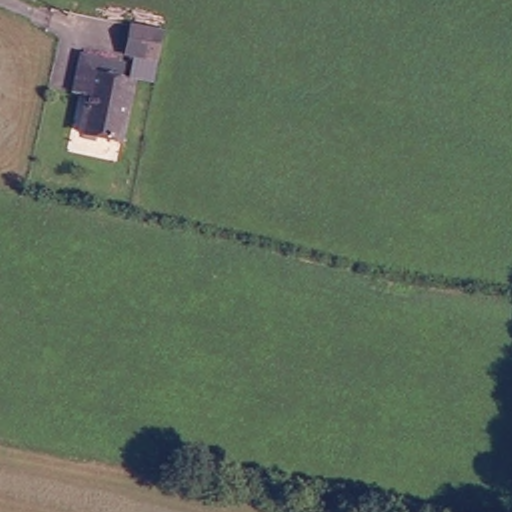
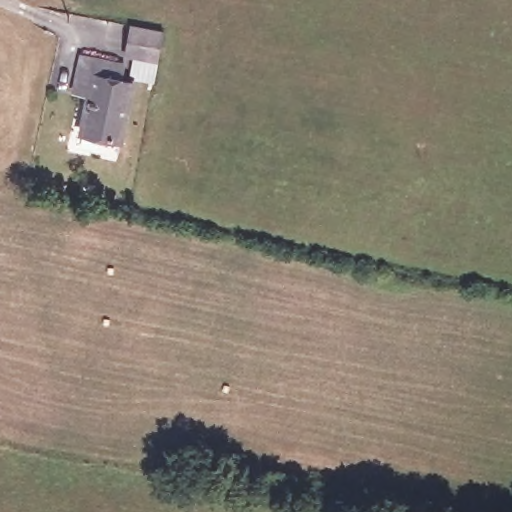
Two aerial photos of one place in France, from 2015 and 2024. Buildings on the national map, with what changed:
unchanged [(161,64),(128,56),(142,28),(150,30),(172,33),(161,64)]
unchanged [(122,61),(119,79),(137,84),(122,142),(85,132),(95,98),(71,92),(76,70),(82,50),(122,61)]

